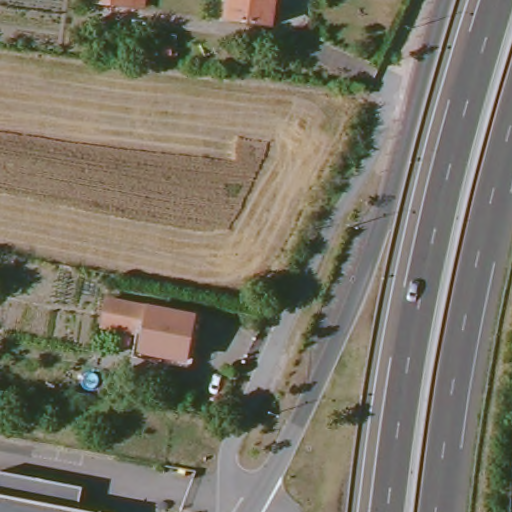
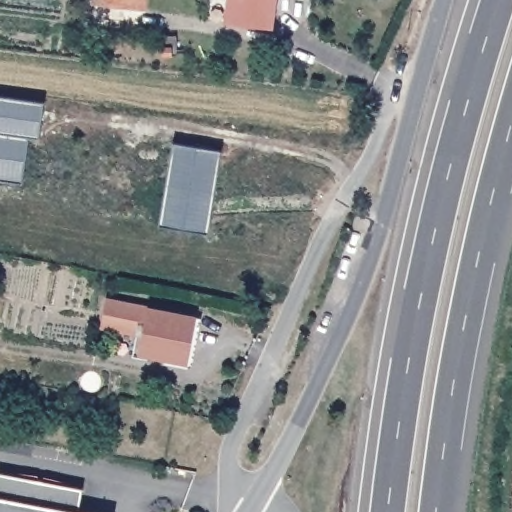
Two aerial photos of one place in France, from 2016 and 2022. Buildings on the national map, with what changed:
unchanged [(136,0),(135,4),(109,0),(136,0)]
unchanged [(226,24),(228,0),(280,0),(276,30),(226,24)]
new [(40,140),(28,138),(23,184),(0,181),(0,97),(45,103),(40,140)]
new [(173,142),(221,151),(209,235),(158,226),(173,142)]
unchanged [(141,355),(145,332),(105,323),(110,296),(195,315),(185,363),(141,355)]
unchanged [(79,510),(87,512),(0,512),(0,472),(83,487),(79,510)]

